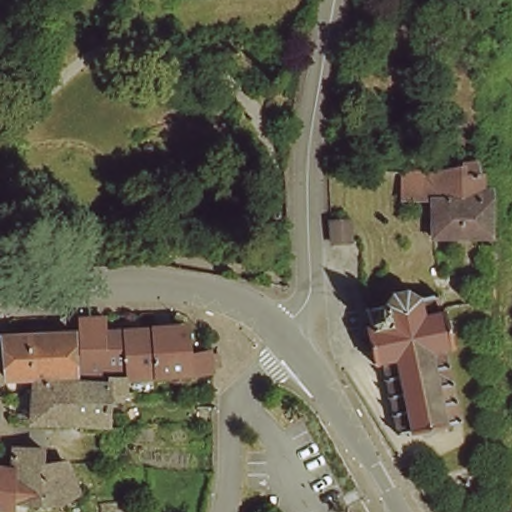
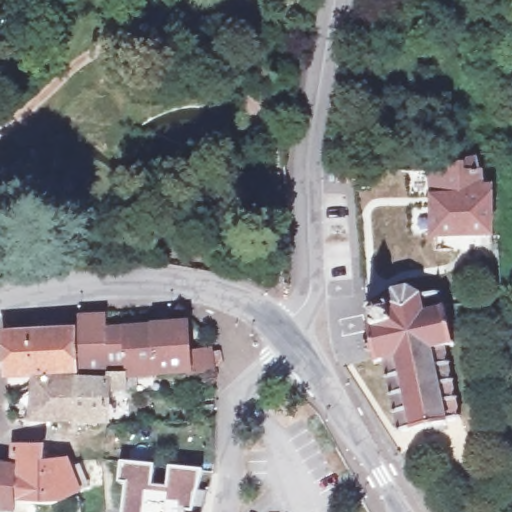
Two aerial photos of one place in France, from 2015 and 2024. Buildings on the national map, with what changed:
unchanged [(29,23),(2,21),(2,25),(0,25),(0,13),(29,15),(29,23)]
unchanged [(422,178),(422,174),(442,174),(455,174),(455,170),(476,172),(476,174),(476,182),(482,183),(482,194),(486,193),(491,194),(492,198),(492,199),(492,202),(493,238),(493,243),(432,242),(433,203),(406,203),(407,177),(422,178)]
unchanged [(396,289),(414,285),(425,290),(435,289),(443,288),(448,304),(457,340),(448,343),(467,414),(403,430),(385,358),(379,359),(375,347),(371,347),(368,337),(374,335),(370,320),(377,318),(373,303),(390,300),(396,289)]
unchanged [(482,299),(482,288),(495,288),(495,296),(482,299)]
unchanged [(125,369),(107,369),(82,372),(80,351),(80,317),(107,315),(108,328),(155,327),(156,369),(125,369)]
unchanged [(220,363),(212,364),(212,369),(186,369),(186,368),(159,369),(156,369),(155,327),(187,324),(188,347),(210,348),(210,353),(218,352),(220,363)]
unchanged [(2,338),(75,332),(77,373),(5,378),(2,338)]
unchanged [(107,375),(107,372),(107,369),(125,369),(125,388),(105,388),(103,419),(77,418),(72,418),(75,378),(107,375)]
unchanged [(72,418),(40,416),(30,415),(35,382),(75,378),(72,418)]
unchanged [(136,388),(136,390),(136,394),(125,394),(125,388),(129,388),(136,388)]
unchanged [(0,505),(0,461),(0,443),(30,446),(45,447),(45,462),(48,462),(59,459),(73,457),(81,475),(84,485),(80,489),(77,491),(75,491),(66,494),(45,495),(20,497),(20,505),(0,505)]
new [(125,485),(118,484),(120,462),(153,465),(151,486),(167,488),(170,468),(202,472),(192,512),(122,512),(125,485)]

